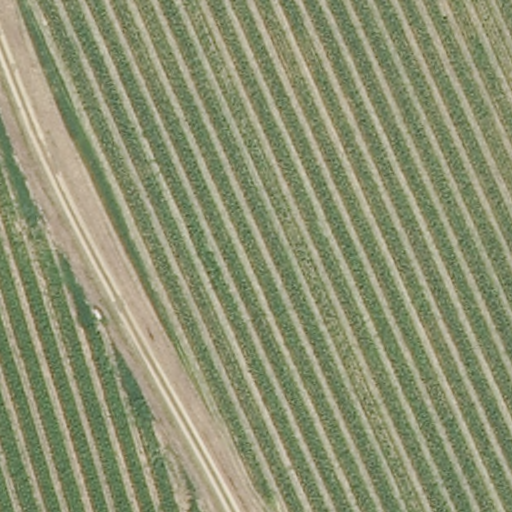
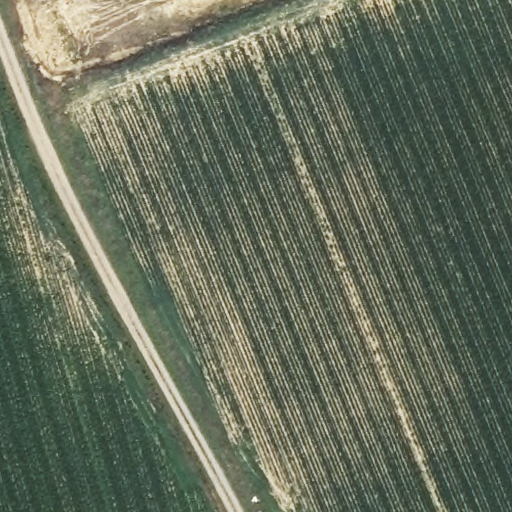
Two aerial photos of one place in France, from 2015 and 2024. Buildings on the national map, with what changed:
[]

